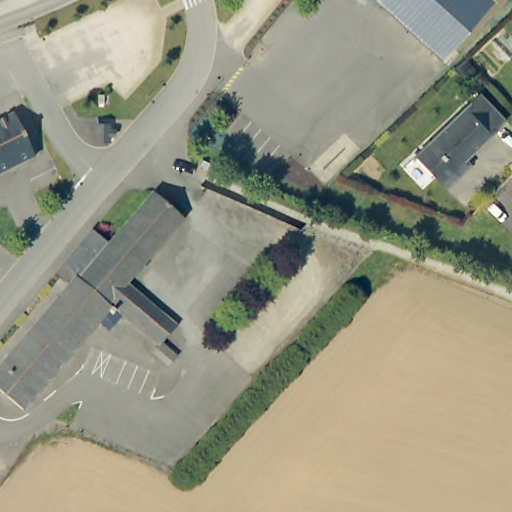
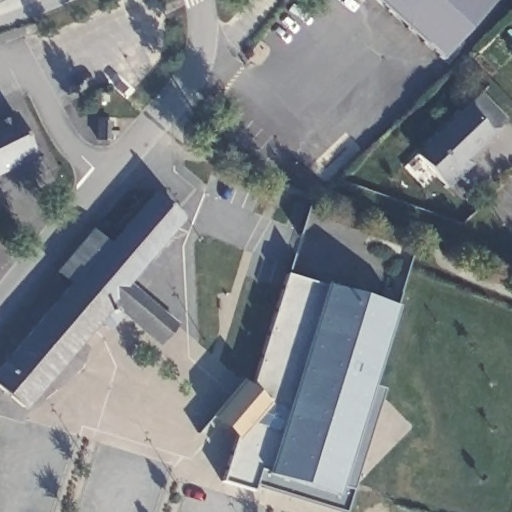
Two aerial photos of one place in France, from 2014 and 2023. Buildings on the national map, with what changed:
unchanged [(381,0),(491,0),(442,54),(381,0)]
unchanged [(506,120),(460,164),(465,171),(447,188),(416,156),(480,91),(506,120)]
unchanged [(37,156),(0,174),(0,121),(16,113),(37,156)]
unchanged [(96,131),(96,114),(109,114),(109,119),(114,119),(114,125),(109,125),(109,131),(96,131)]
unchanged [(79,279),(79,280),(75,285),(59,273),(94,230),(111,244),(155,191),(184,214),(129,283),(112,305),(79,279)]
new [(371,387),(384,389),(345,512),(342,512),(255,487),(253,491),(224,482),(235,439),(211,419),(240,380),(252,389),(285,275),(325,287),(396,308),(371,387)]
unchanged [(26,414),(0,386),(0,380),(75,285),(79,280),(79,279),(112,305),(101,320),(93,330),(32,407),(26,414)]
unchanged [(177,322),(164,339),(162,343),(136,323),(124,314),(112,305),(129,283),(177,322)]
demolished [(181,353),(176,360),(172,366),(154,352),(162,343),(164,339),(181,353)]

